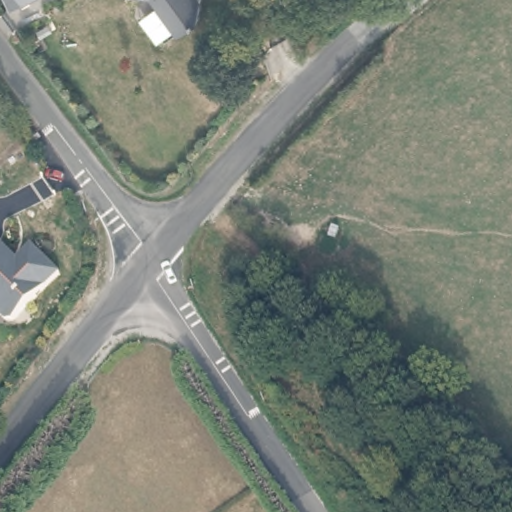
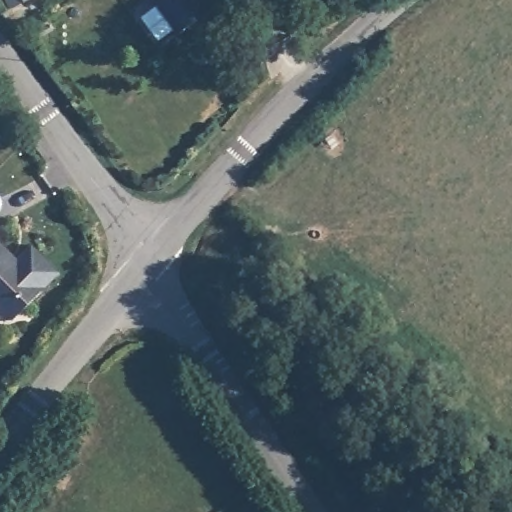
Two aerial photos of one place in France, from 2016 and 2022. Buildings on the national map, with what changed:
unchanged [(22,2),(20,0),(26,0),(22,2)]
unchanged [(202,11),(202,21),(182,37),(152,1),(143,0),(202,0),(205,4),(202,11)]
unchanged [(31,248),(59,277),(11,324),(4,324),(0,320),(0,250),(15,264),(31,248)]

